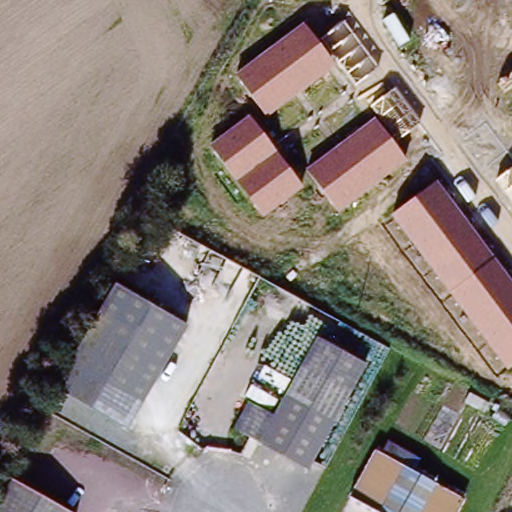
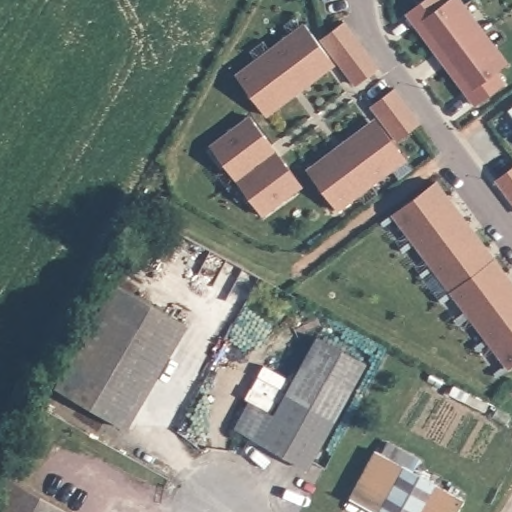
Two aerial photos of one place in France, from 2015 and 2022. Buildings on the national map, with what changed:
new [(505,86),(475,107),(445,66),(440,60),(436,54),(407,14),(425,0),(441,0),(444,4),(450,0),(458,0),(481,31),(507,66),(496,74),(505,86)]
unchanged [(378,68),(355,84),(322,38),(344,21),(378,68)]
unchanged [(304,23),(335,66),(266,115),(237,72),(304,23)]
unchanged [(377,118),(369,106),(397,89),(420,123),(395,141),(409,161),(339,210),(307,168),(377,118)]
unchanged [(250,115),(303,187),(263,216),(210,144),(250,115)]
unchanged [(496,179),(512,168),(512,201),(496,179)]
unchanged [(437,181),(512,281),(512,364),(507,368),(394,214),(437,181)]
unchanged [(182,321),(120,426),(50,384),(112,281),(182,321)]
unchanged [(361,366),(306,468),(234,429),(248,403),(272,417),(314,341),(361,366)]
unchanged [(453,512),(379,512),(346,495),(371,451),(461,498),(453,512)]
unchanged [(74,512),(0,512),(0,485),(8,472),(75,509),(74,512)]

